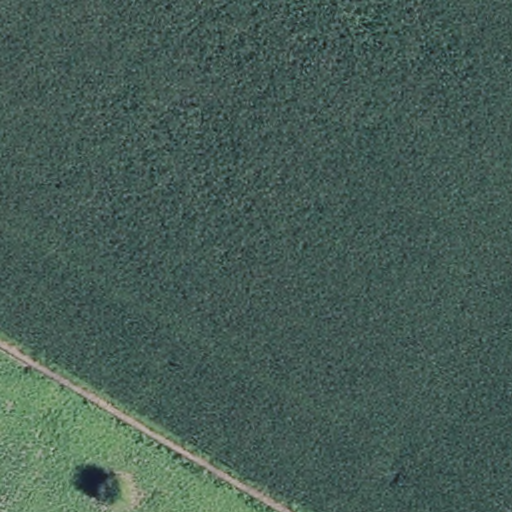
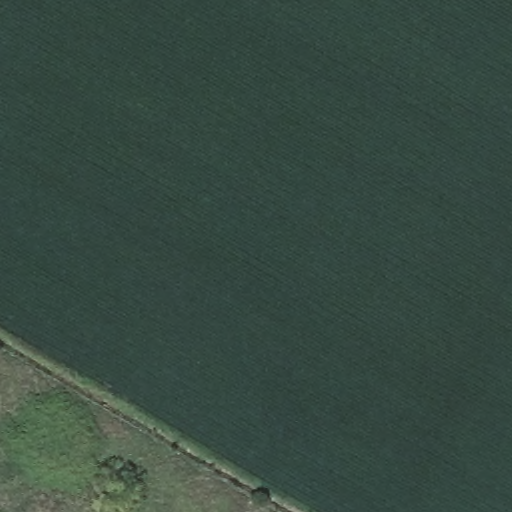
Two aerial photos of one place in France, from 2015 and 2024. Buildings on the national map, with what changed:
[]

